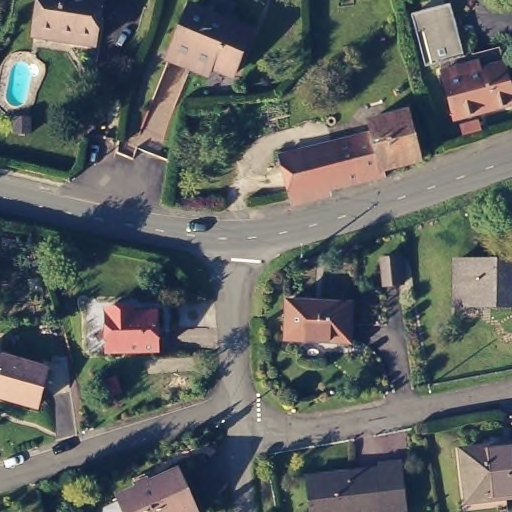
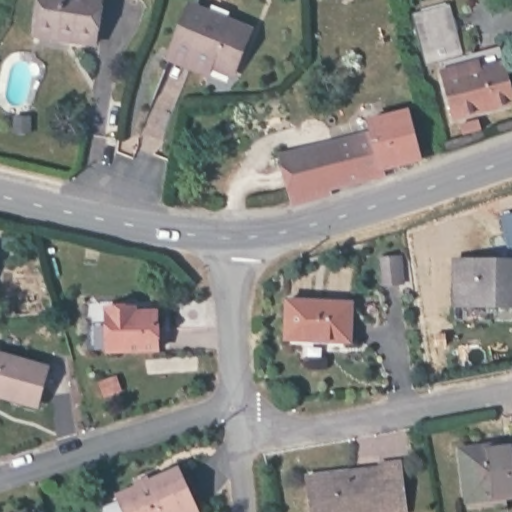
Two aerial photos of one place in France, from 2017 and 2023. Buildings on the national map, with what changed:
unchanged [(42,0),(105,0),(100,29),(40,19),(42,0)]
unchanged [(169,49),(172,41),(171,40),(188,0),(198,0),(250,21),(232,65),(211,57),(208,65),(169,49)]
unchanged [(512,86),(512,95),(454,110),(440,54),(500,38),(512,86)]
unchanged [(303,192),(292,195),(279,146),(371,124),(368,112),(408,102),(420,150),(383,160),(385,166),(302,186),(303,192)]
unchanged [(492,251),(512,252),(512,292),(490,291),(490,287),(455,287),(455,247),(492,247),(492,251)]
unchanged [(397,257),(400,284),(384,286),(381,259),(397,257)]
unchanged [(287,291),(351,294),(350,332),(285,330),(287,291)]
unchanged [(111,304),(128,303),(140,303),(140,308),(161,307),(162,345),(112,347),(111,304)]
unchanged [(42,359),(31,396),(0,388),(0,347),(42,359)]
unchanged [(499,436),(512,435),(512,487),(505,488),(505,484),(466,488),(461,443),(500,439),(499,436)]
unchanged [(399,457),(405,504),(383,507),(378,459),(399,457)]
unchanged [(351,472),(364,471),(362,461),(378,459),(383,507),(341,512),(311,512),(305,468),(350,462),(351,472)]
unchanged [(137,478),(135,474),(146,469),(148,473),(177,460),(196,500),(200,509),(195,512),(129,512),(117,487),(137,478)]

